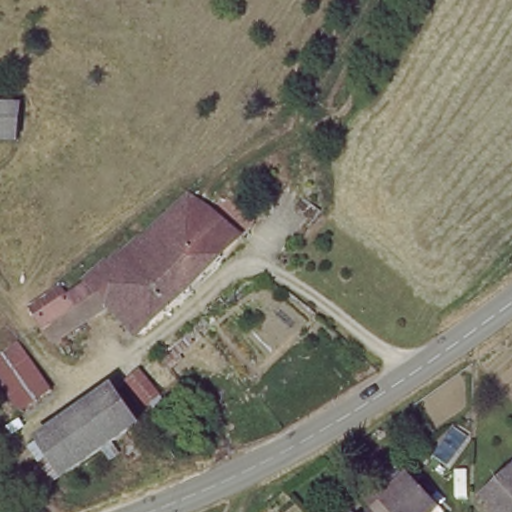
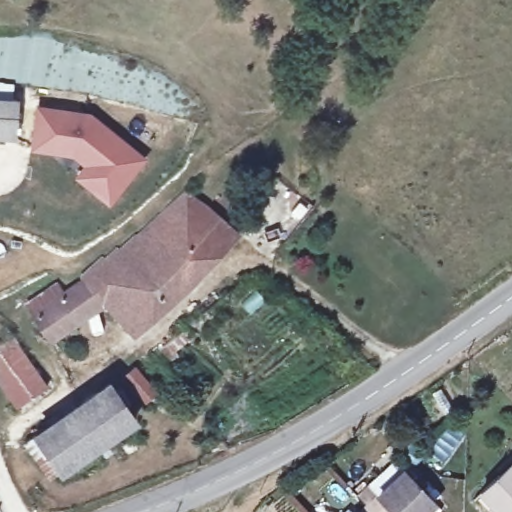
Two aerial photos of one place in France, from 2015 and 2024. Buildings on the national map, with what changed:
unchanged [(16,133),(0,133),(0,100),(13,100),(16,133)]
new [(110,204),(75,177),(84,165),(73,157),(30,150),(36,107),(90,114),(146,158),(110,204)]
unchanged [(233,235),(173,293),(130,330),(101,302),(56,342),(33,318),(90,268),(87,264),(118,242),(181,182),(193,192),(204,203),(221,220),(233,235)]
unchanged [(244,217),(233,228),(204,203),(216,193),(244,217)]
unchanged [(298,263),(293,271),(292,272),(280,262),(290,255),(298,263)]
unchanged [(0,380),(0,347),(8,340),(28,363),(46,383),(21,405),(0,380)]
unchanged [(93,381),(125,412),(103,434),(70,402),(93,381)]
unchanged [(61,475),(30,443),(70,402),(103,434),(61,475)]
unchanged [(486,487),(512,462),(512,512),(509,512),(486,487)]
unchanged [(367,500),(401,467),(431,499),(417,512),(355,512),(367,500)]

